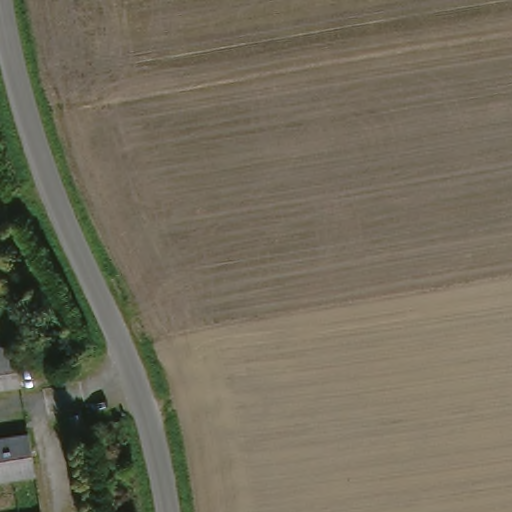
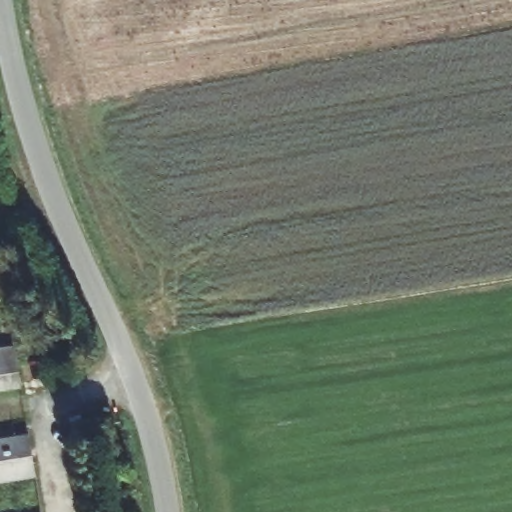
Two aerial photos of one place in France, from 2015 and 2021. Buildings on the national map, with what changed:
unchanged [(24,348),(30,384),(0,389),(0,351),(24,348)]
unchanged [(83,414),(85,427),(73,429),(70,416),(83,414)]
unchanged [(33,435),(39,473),(0,479),(0,440),(33,435)]

